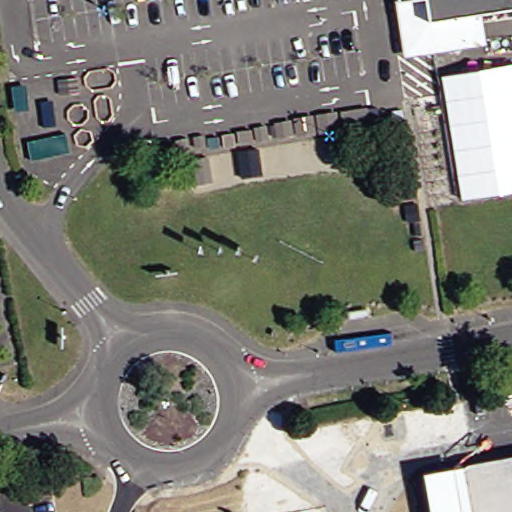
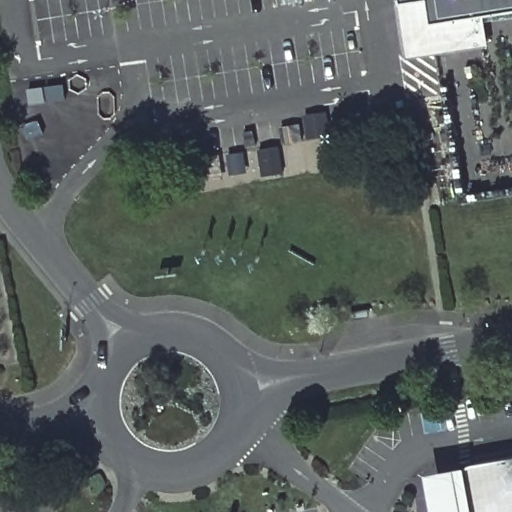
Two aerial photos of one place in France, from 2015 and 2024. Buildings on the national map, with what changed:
unchanged [(450,47),(420,51),(413,0),(443,0),(450,47)]
unchanged [(450,47),(443,0),(512,0),(512,10),(495,13),(498,40),(476,43),(450,47)]
demolished [(512,68),(512,196),(461,202),(440,77),(512,68)]
unchanged [(512,461),(512,512),(465,512),(457,471),(512,461)]

